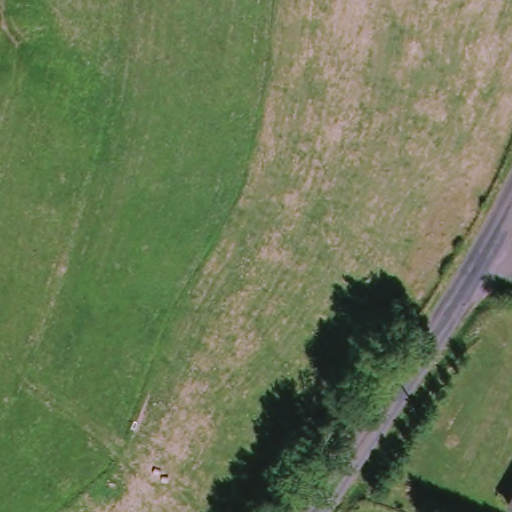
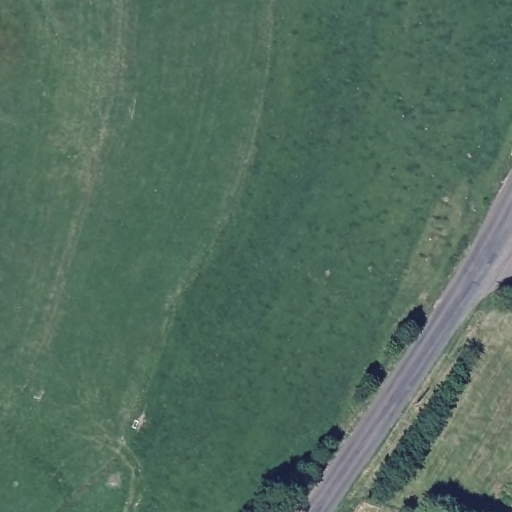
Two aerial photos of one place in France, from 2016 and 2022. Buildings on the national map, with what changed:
unchanged [(512,494),(512,506),(507,503),(512,494)]

